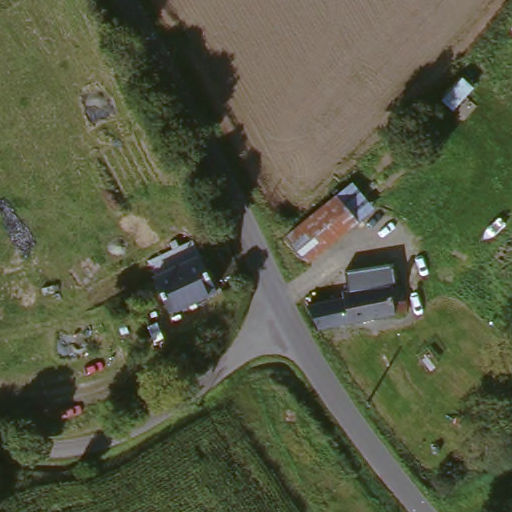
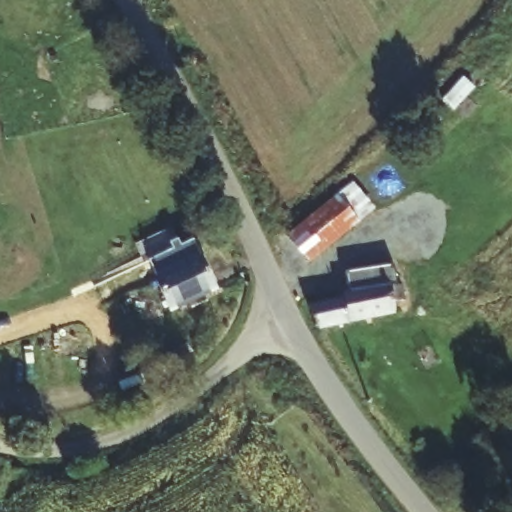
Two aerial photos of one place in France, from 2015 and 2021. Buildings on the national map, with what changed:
unchanged [(352,180),(378,204),(305,267),(299,260),(308,252),(291,233),(352,180)]
unchanged [(202,257),(218,290),(207,296),(211,303),(196,312),(191,304),(176,312),(159,278),(202,257)]
unchanged [(341,274),(391,266),(395,285),(403,283),(406,310),(313,324),(302,298),(343,292),(341,274)]

